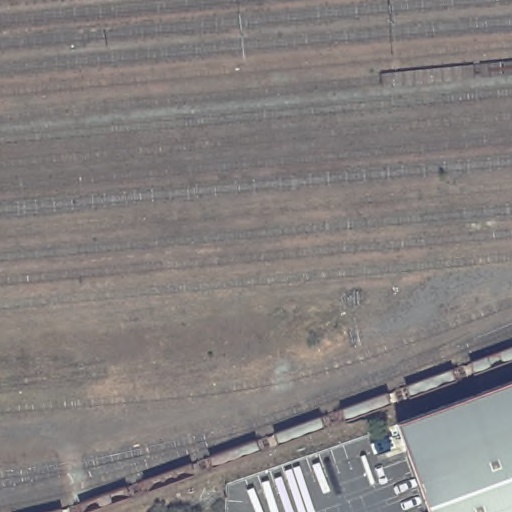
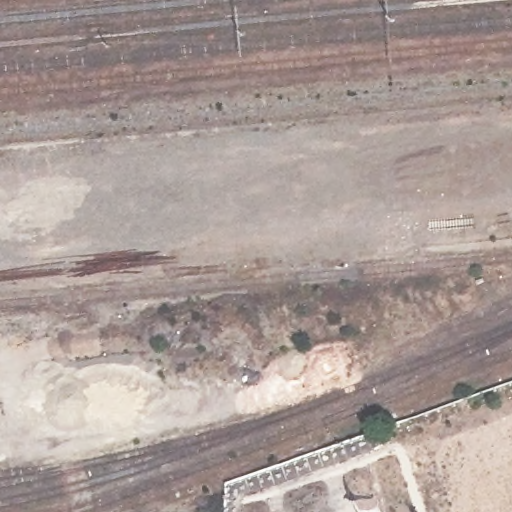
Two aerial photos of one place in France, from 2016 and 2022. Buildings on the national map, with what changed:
demolished [(512,384),(512,512),(434,512),(401,425),(512,384)]

